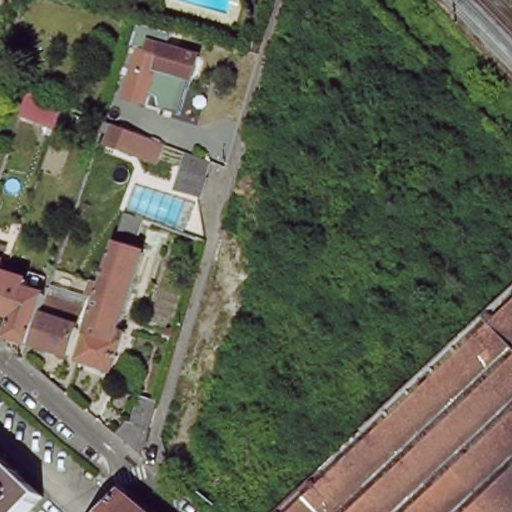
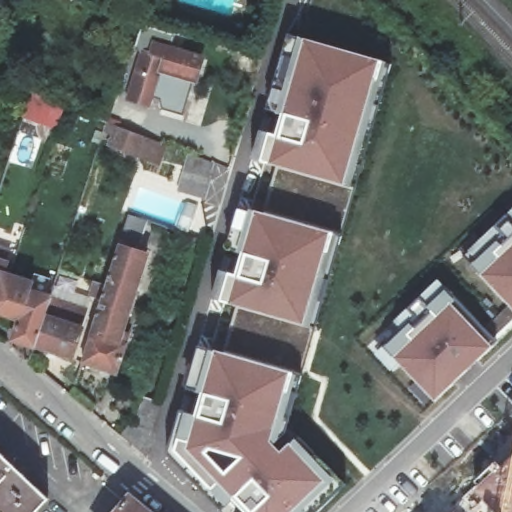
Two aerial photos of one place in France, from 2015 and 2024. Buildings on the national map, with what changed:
unchanged [(132,61),(141,34),(154,38),(161,40),(155,56),(202,71),(195,93),(161,82),(149,120),(128,114),(143,65),(132,61)]
new [(378,62),(342,188),(258,164),(266,135),(276,138),(282,113),(303,40),(378,62)]
unchanged [(172,51),(174,45),(182,47),(179,54),(172,51)]
unchanged [(156,160),(145,156),(111,142),(118,125),(151,138),(162,142),(156,160)]
unchanged [(180,188),(191,154),(215,162),(205,195),(180,188)]
new [(329,235),(302,329),(218,305),(226,275),(235,278),(253,212),(329,235)]
unchanged [(90,291),(101,295),(102,292),(124,222),(133,226),(141,230),(131,260),(143,263),(119,340),(125,342),(112,380),(79,370),(86,347),(88,342),(86,341),(91,325),(80,322),(90,291)]
new [(471,267),(497,242),(501,249),(512,237),(512,312),(471,267)]
unchanged [(0,277),(0,270),(2,271),(0,277)]
unchanged [(32,278),(53,285),(45,307),(45,308),(32,349),(30,355),(25,371),(6,355),(15,328),(0,323),(0,297),(4,285),(27,292),(32,278)]
unchanged [(0,284),(4,285),(0,297),(0,284)]
new [(408,325),(413,330),(430,314),(425,307),(443,290),(455,301),(451,306),(492,349),(435,404),(382,348),(408,325)]
demolished [(512,301),(512,512),(289,512),(297,505),(324,478),(512,301)]
unchanged [(32,349),(45,308),(60,312),(58,322),(68,325),(66,332),(80,337),(70,368),(30,355),(32,349)]
new [(288,375),(268,443),(279,454),(288,446),(323,483),(293,512),(241,512),(216,486),(209,491),(172,454),(176,441),(187,445),(208,370),(213,352),(288,375)]
unchanged [(162,402),(146,457),(120,435),(132,423),(142,426),(151,399),(162,402)]
unchanged [(0,457),(43,498),(30,512),(0,512),(0,457)]
new [(505,499),(511,461),(512,459),(512,512),(503,512),(505,499)]
unchanged [(124,500),(138,512),(114,512),(124,500)]

